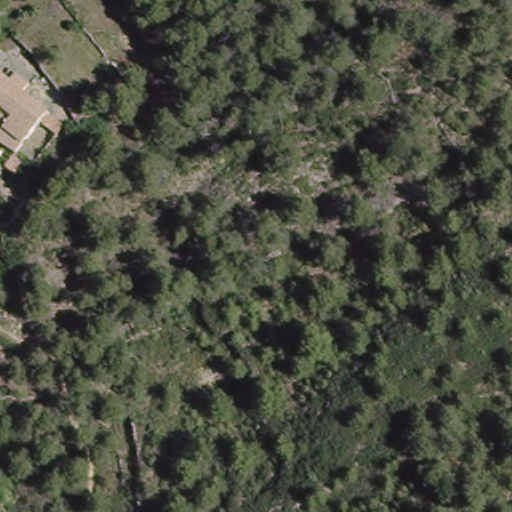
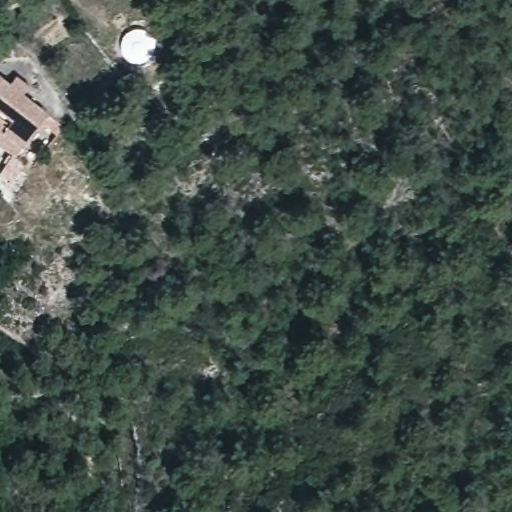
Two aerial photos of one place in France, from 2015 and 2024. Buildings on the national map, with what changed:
unchanged [(10,82),(18,77),(29,92),(22,97),(51,115),(19,155),(0,145),(0,73),(2,71),(10,82)]

